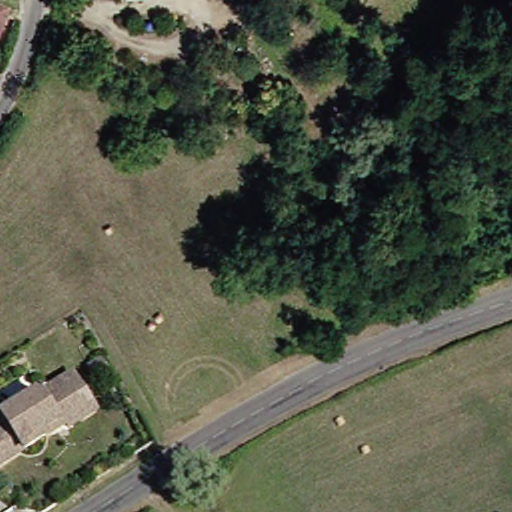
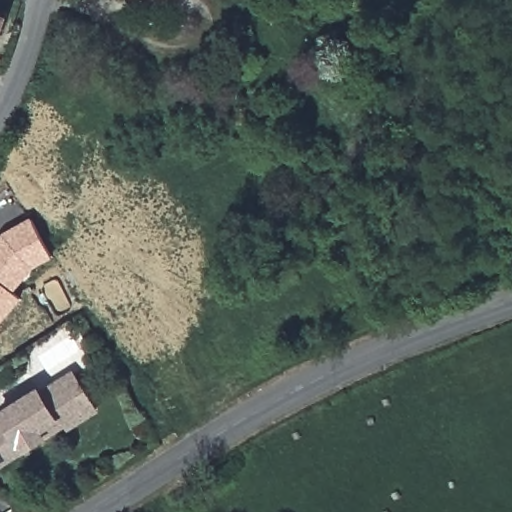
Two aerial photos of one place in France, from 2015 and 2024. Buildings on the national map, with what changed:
new [(15,291),(24,298),(0,326),(0,235),(1,233),(31,217),(55,258),(36,267),(15,291)]
unchanged [(0,430),(7,425),(1,415),(39,391),(41,395),(73,373),(96,412),(71,428),(69,424),(45,439),(25,452),(4,466),(0,468),(0,430)]

